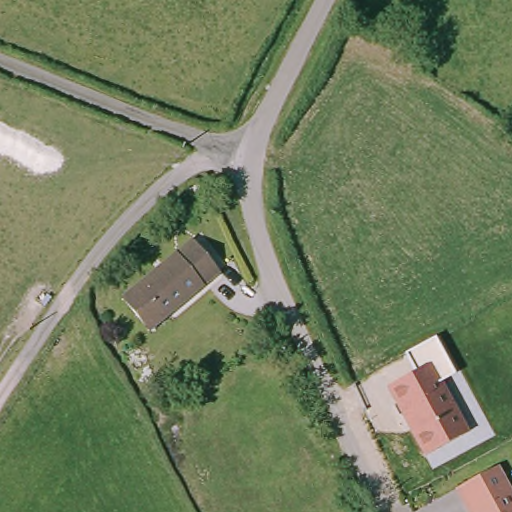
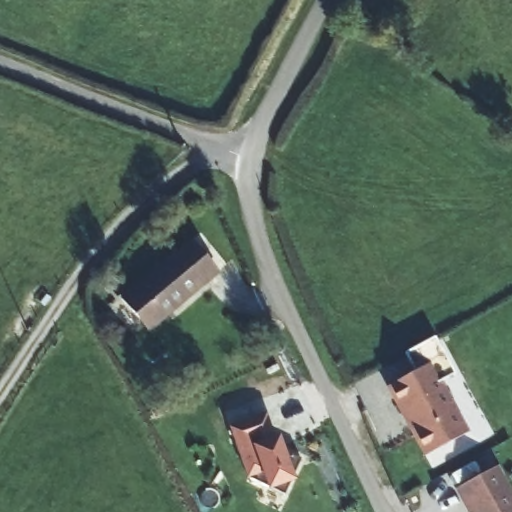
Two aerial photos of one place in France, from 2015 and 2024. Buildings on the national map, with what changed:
unchanged [(128,299),(198,246),(219,278),(151,329),(128,299)]
unchanged [(469,432),(423,457),(387,387),(414,372),(406,353),(436,337),(455,375),(443,381),(469,432)]
new [(293,472),(295,481),(289,483),(284,491),(278,486),(269,489),(266,480),(246,475),(231,427),(267,412),(276,436),(281,435),(286,452),(301,459),(293,472)]
unchanged [(492,464),(512,503),(512,512),(467,512),(453,484),(492,464)]

